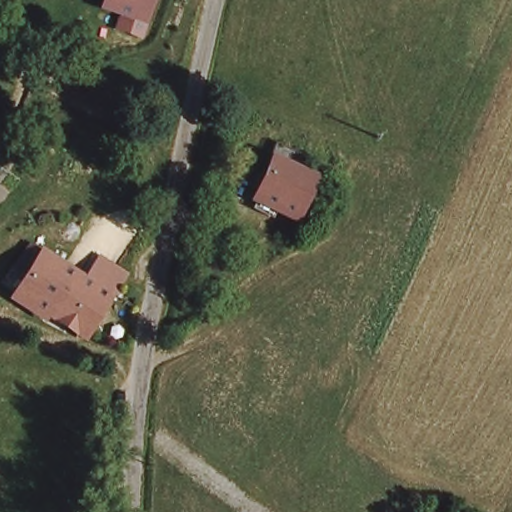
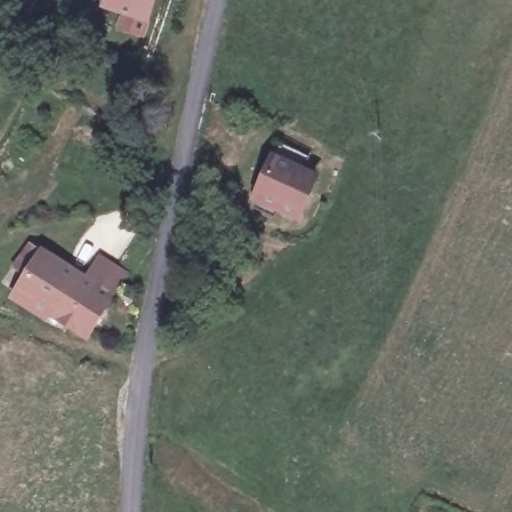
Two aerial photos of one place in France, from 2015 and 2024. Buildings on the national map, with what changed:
unchanged [(98,9),(101,0),(152,0),(144,25),(98,9)]
unchanged [(254,197),(276,151),(304,162),(299,176),(312,182),(295,217),(254,197)]
unchanged [(85,270),(95,252),(129,266),(92,336),(9,297),(45,244),(85,270)]

